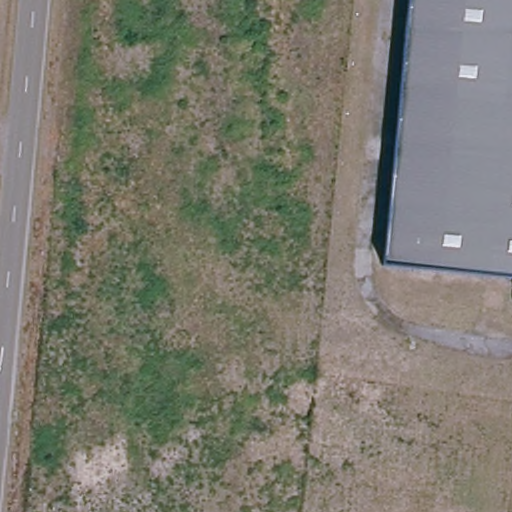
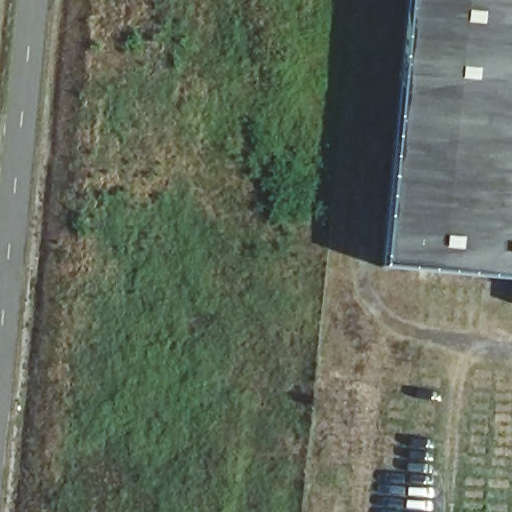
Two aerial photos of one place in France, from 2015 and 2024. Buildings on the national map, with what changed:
unchanged [(512,279),(381,266),(407,0),(512,0),(512,279)]

